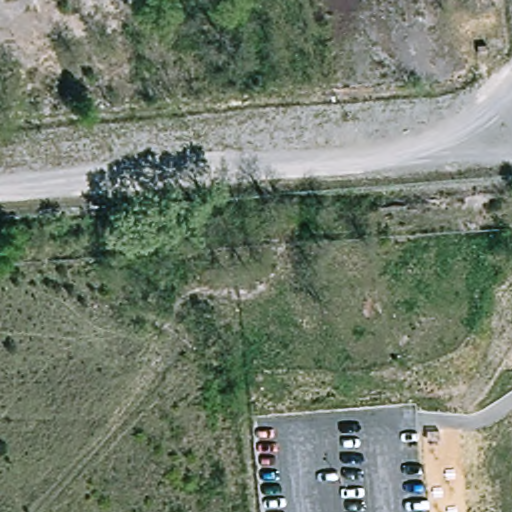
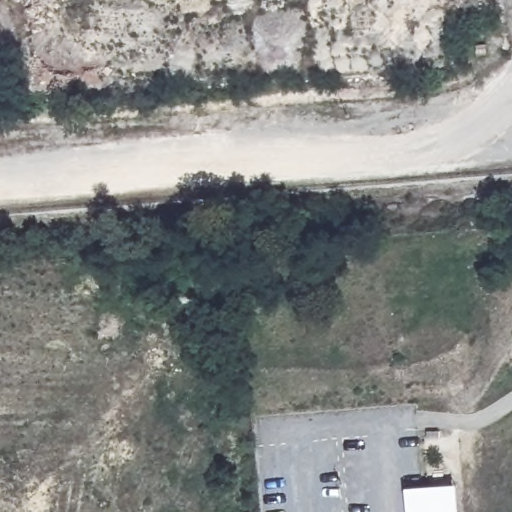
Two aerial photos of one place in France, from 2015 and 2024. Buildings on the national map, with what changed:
new [(458,484),(459,512),(412,512),(411,486),(458,484)]

